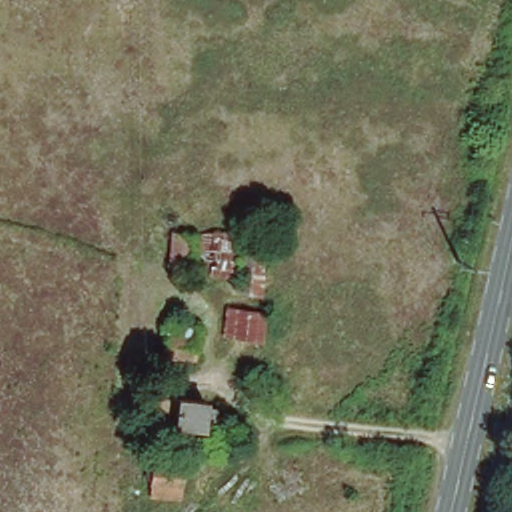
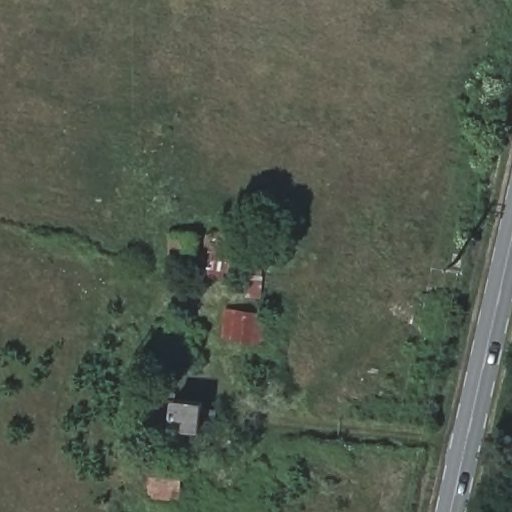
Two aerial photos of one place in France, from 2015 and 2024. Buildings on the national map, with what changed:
unchanged [(498,87),(503,88),(509,90),(507,100),(502,98),(495,97),(498,87)]
unchanged [(232,277),(208,274),(192,272),(197,230),(212,232),(237,234),(232,277)]
unchanged [(167,267),(171,232),(191,235),(186,270),(167,267)]
unchanged [(242,234),(243,232),(265,235),(259,294),(237,291),(242,234)]
unchanged [(226,307),(265,312),(261,343),(222,336),(226,307)]
unchanged [(198,370),(167,367),(169,343),(170,331),(199,334),(197,347),(201,347),(198,370)]
unchanged [(223,432),(211,431),(211,434),(166,428),(169,399),(214,405),(214,410),(225,412),(223,432)]
unchanged [(182,449),(179,499),(149,497),(153,446),(182,449)]

